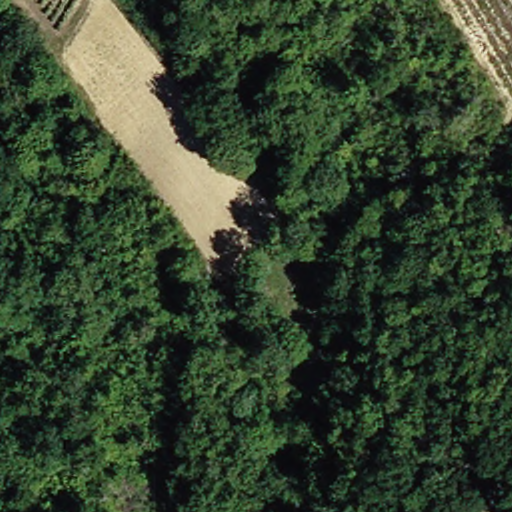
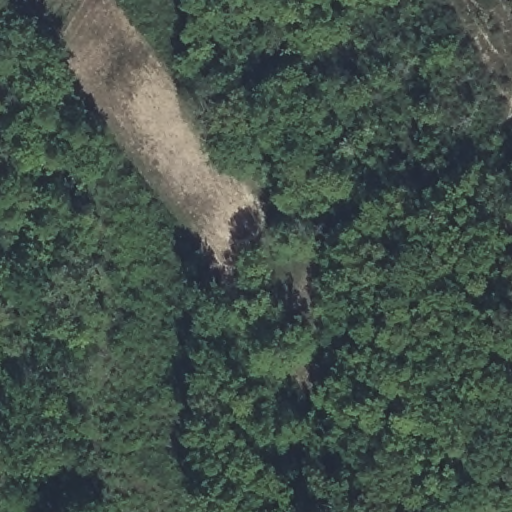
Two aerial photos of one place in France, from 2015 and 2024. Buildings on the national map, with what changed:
unchanged [(116,338),(128,357),(117,363),(105,345),(116,338)]

